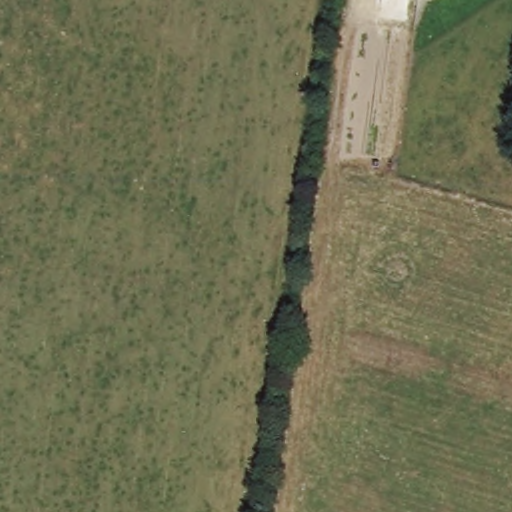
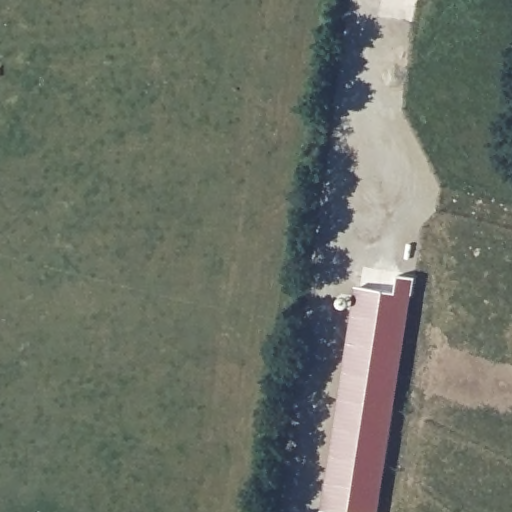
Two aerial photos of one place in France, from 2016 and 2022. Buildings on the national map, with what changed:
unchanged [(404,0),(421,0),(420,2),(404,0)]
new [(395,293),(398,275),(415,277),(379,512),(337,512),(323,510),(357,285),(395,293)]

